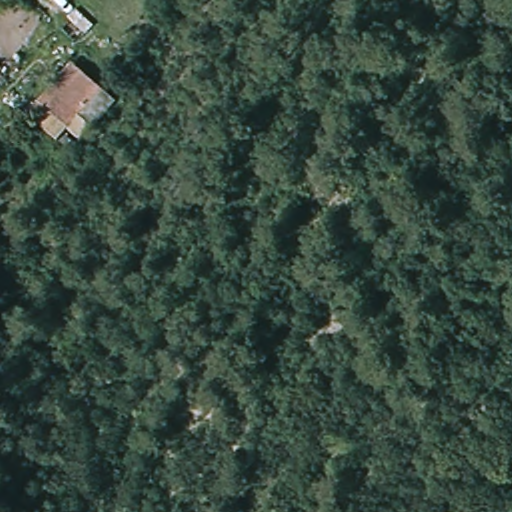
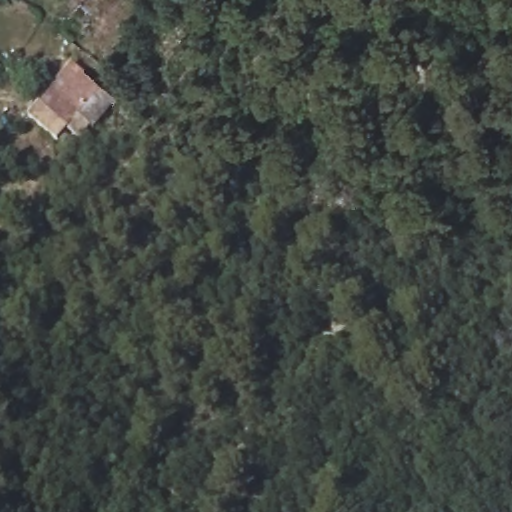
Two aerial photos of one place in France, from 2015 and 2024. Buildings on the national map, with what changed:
unchanged [(69,62),(114,100),(81,139),(67,129),(59,140),(25,114),(69,62)]

